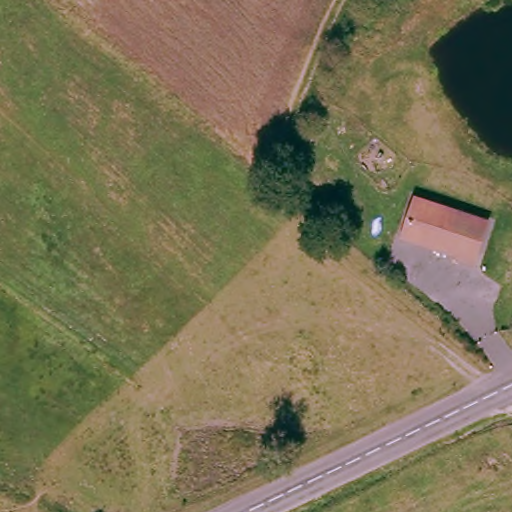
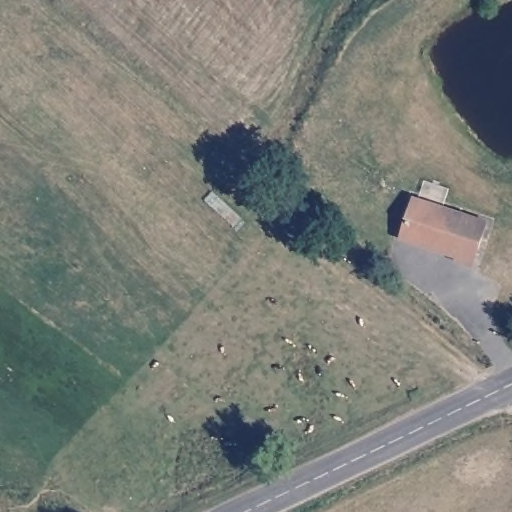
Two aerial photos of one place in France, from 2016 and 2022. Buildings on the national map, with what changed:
unchanged [(401,243),(416,196),(481,218),(473,244),(471,251),(446,260),(425,252),(401,243)]

